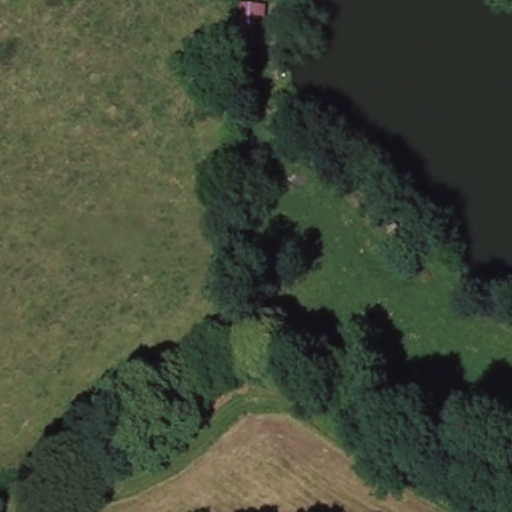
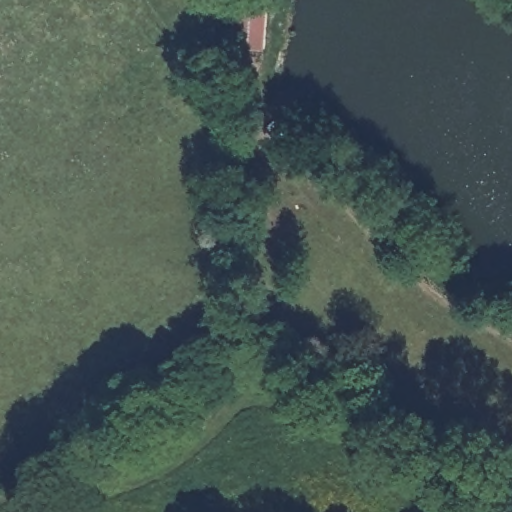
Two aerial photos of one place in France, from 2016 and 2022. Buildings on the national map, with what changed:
unchanged [(267,10),(261,49),(233,46),(237,7),(267,10)]

